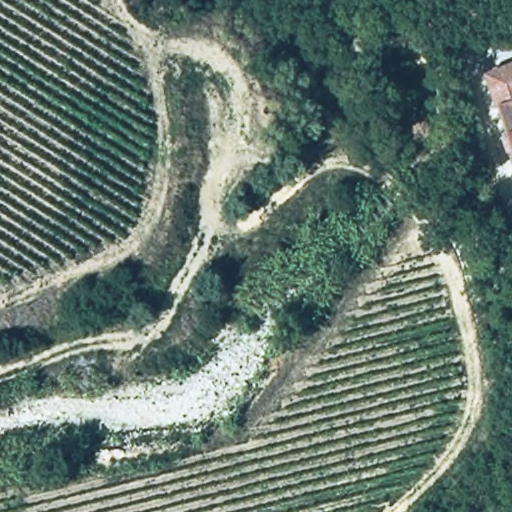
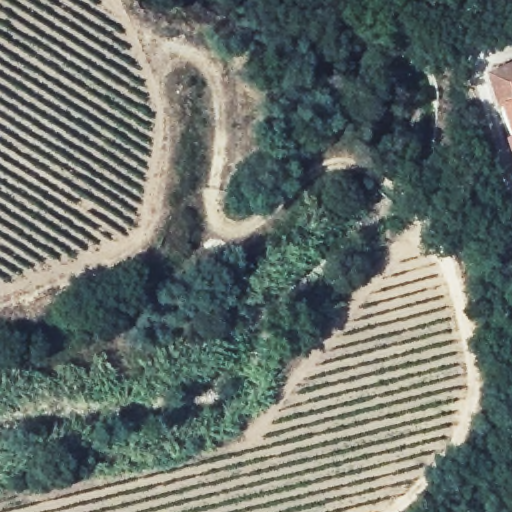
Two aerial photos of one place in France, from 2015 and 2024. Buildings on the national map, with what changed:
unchanged [(512,66),(512,160),(478,81),(512,66)]

